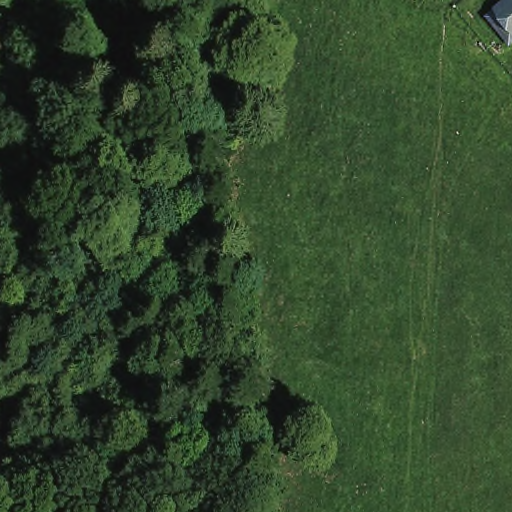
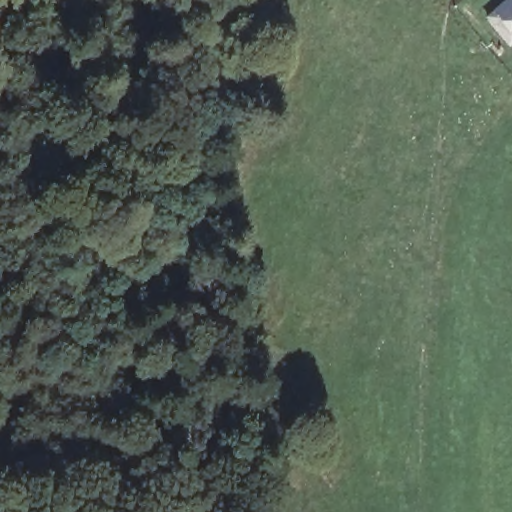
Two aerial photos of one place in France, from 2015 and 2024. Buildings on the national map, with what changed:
unchanged [(492,6),(501,0),(512,0),(512,34),(492,6)]

